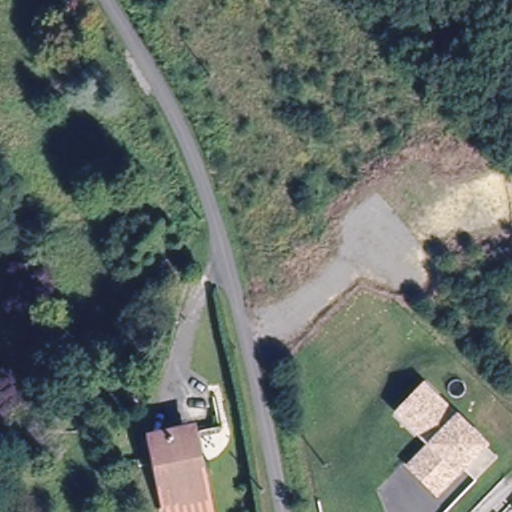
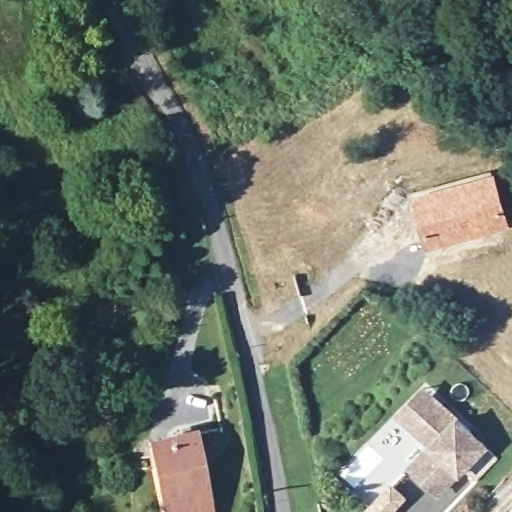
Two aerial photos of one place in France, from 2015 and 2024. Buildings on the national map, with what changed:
new [(509,221),(431,242),(420,201),(418,193),(437,188),(495,172),(509,221)]
unchanged [(494,456),(472,479),(458,466),(436,489),(408,462),(427,442),(403,419),(428,392),(494,456)]
unchanged [(191,427),(206,494),(165,502),(149,437),(191,427)]
new [(403,499),(391,512),(369,512),(368,511),(391,487),(403,499)]

